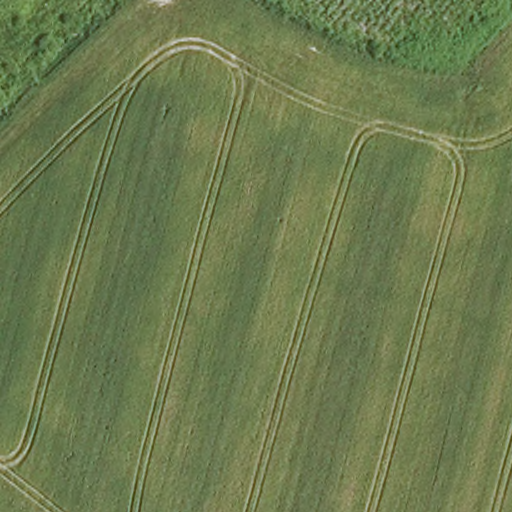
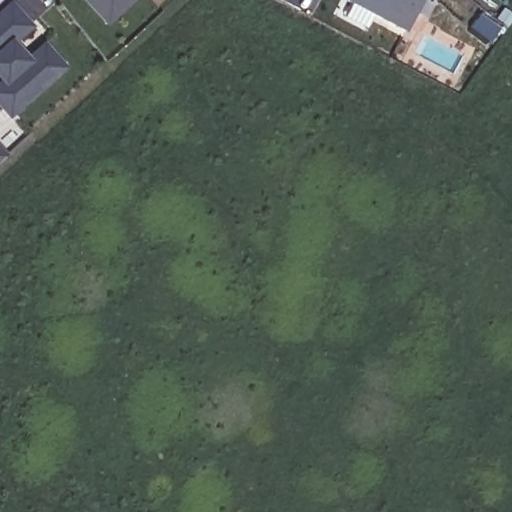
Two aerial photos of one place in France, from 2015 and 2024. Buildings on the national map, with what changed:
new [(27,55),(44,40),(67,67),(10,120),(0,110),(0,10),(11,0),(13,0),(34,25),(16,43),(27,55)]
new [(106,26),(83,0),(135,0),(106,26)]
new [(407,33),(346,0),(422,0),(407,33)]

